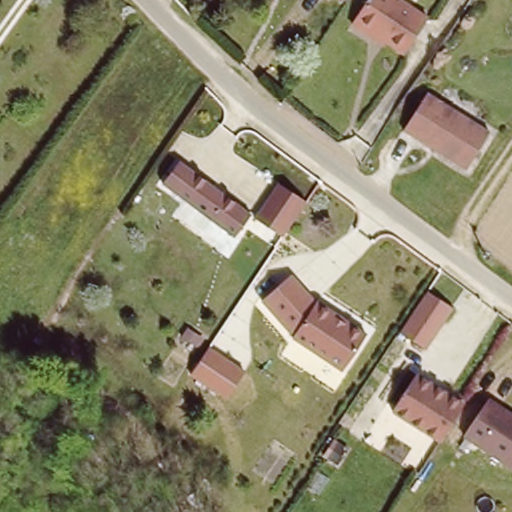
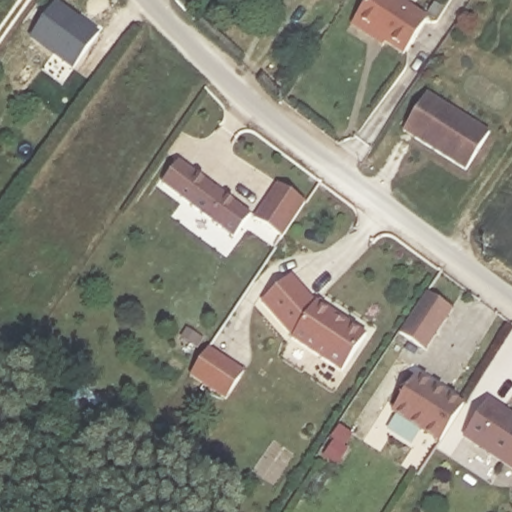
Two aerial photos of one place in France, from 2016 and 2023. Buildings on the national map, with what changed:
unchanged [(355,18),(367,0),(404,0),(428,16),(405,51),(386,38),(383,43),(352,23),(355,18)]
new [(57,1),(98,31),(71,70),(30,39),(57,1)]
unchanged [(428,96),(492,134),(468,171),(405,134),(428,96)]
unchanged [(167,186),(182,164),(255,214),(239,236),(167,186)]
unchanged [(307,203),(283,238),(255,218),(276,183),(307,203)]
unchanged [(347,368),(299,336),(300,333),(268,295),(295,272),(321,303),(322,300),(342,313),(352,320),(371,333),(347,368)]
unchanged [(451,309),(423,347),(397,330),(422,290),(451,309)]
unchanged [(191,376),(210,346),(247,371),(227,400),(191,376)]
unchanged [(463,407),(440,444),(392,414),(416,377),(463,407)]
unchanged [(512,473),(463,444),(488,406),(512,420),(512,473)]

